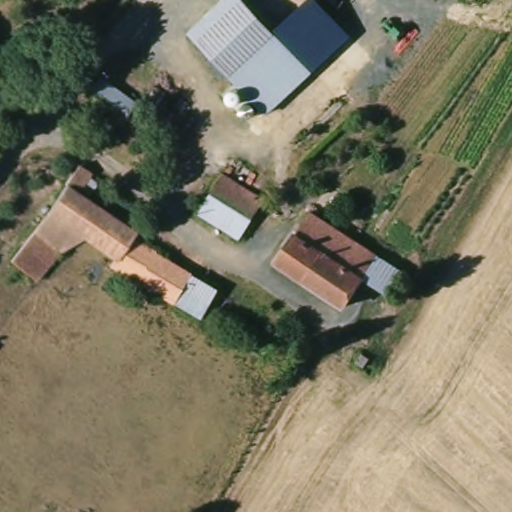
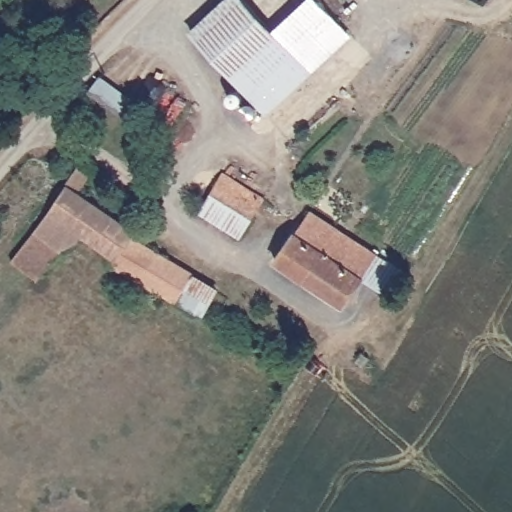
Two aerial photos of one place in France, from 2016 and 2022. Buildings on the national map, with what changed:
unchanged [(227,76),(192,36),(233,0),(240,0),(272,37),(311,4),(338,36),(300,69),(263,102),(227,76)]
unchanged [(94,78),(130,104),(119,119),(83,93),(94,78)]
unchanged [(97,172),(86,188),(74,180),(85,163),(97,172)]
unchanged [(224,175),(265,201),(253,220),(213,192),(224,175)]
unchanged [(40,229),(50,218),(56,212),(54,209),(72,183),(140,232),(138,236),(119,265),(68,228),(53,245),(49,244),(26,271),(26,270),(16,261),(40,229)]
unchanged [(213,192),(253,220),(238,242),(199,215),(213,192)]
unchanged [(348,311),(278,268),(304,229),(311,217),(338,234),(407,277),(394,299),(366,282),(348,311)]
unchanged [(116,270),(119,265),(138,236),(195,274),(176,305),(116,270)]
unchanged [(221,291),(203,321),(176,305),(195,274),(221,291)]

